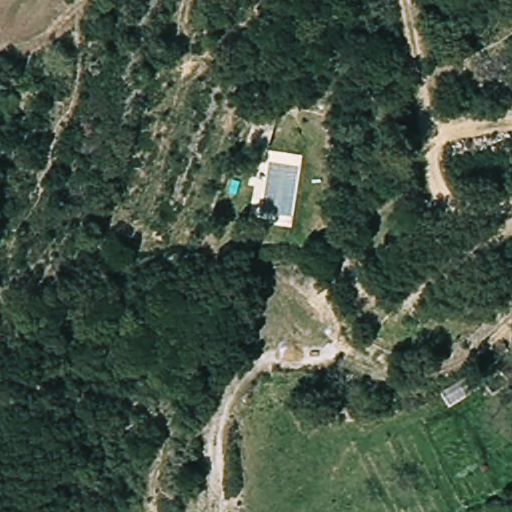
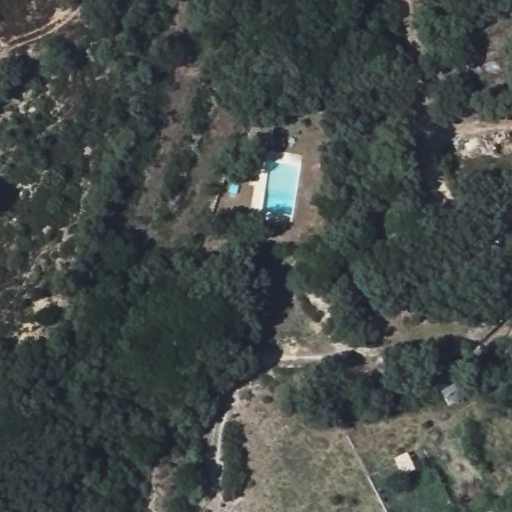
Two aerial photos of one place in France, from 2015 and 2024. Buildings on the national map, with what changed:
unchanged [(251,129),(256,118),(236,116),(241,83),(270,86),(264,110),(277,116),(272,135),(251,129)]

